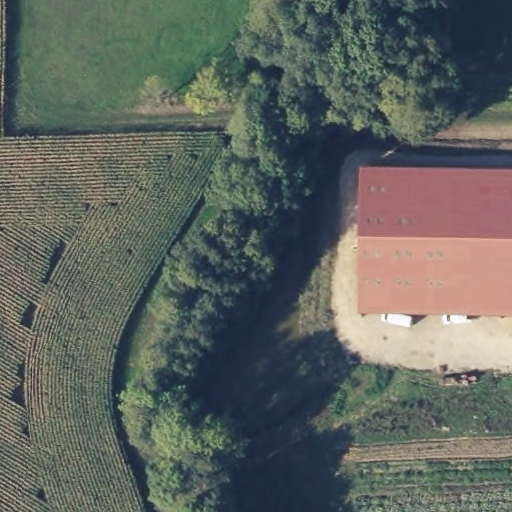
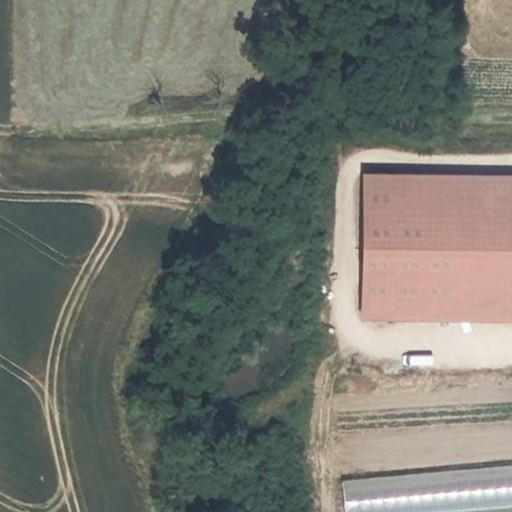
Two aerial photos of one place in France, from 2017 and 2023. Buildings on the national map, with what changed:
unchanged [(352,182),(512,187),(512,306),(349,303),(352,182)]
new [(340,479),(512,464),(512,512),(344,512),(340,479)]

